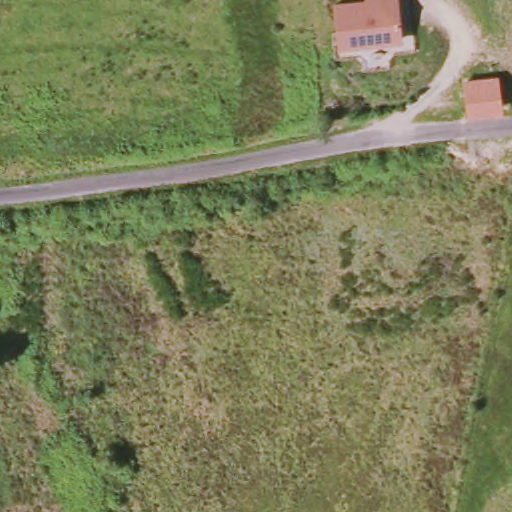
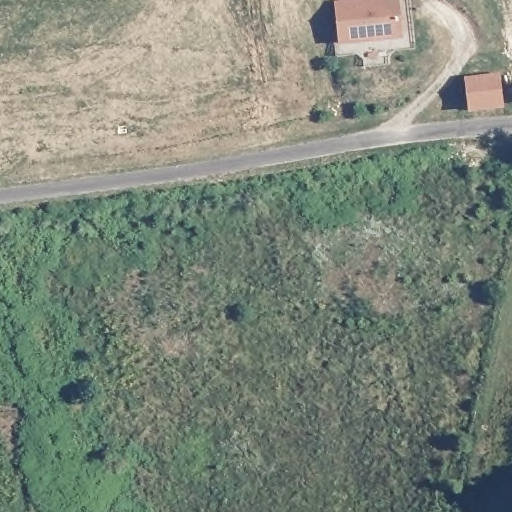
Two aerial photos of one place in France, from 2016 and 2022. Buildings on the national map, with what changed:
unchanged [(336,44),(333,4),(367,1),(367,0),(396,0),(399,39),(336,44)]
unchanged [(502,110),(466,113),(463,79),(499,75),(502,110)]

